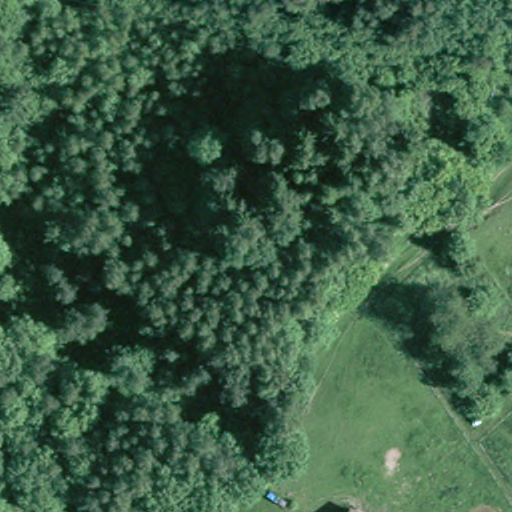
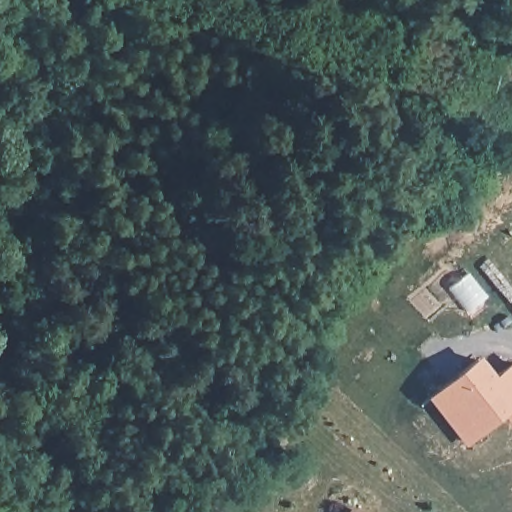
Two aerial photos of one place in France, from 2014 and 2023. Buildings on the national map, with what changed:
new [(430,395),(477,359),(493,378),(512,360),(512,415),(507,419),(503,414),(492,423),(487,414),(470,413),(455,427),(430,395)]
unchanged [(344,504),(356,512),(338,512),(344,504)]

